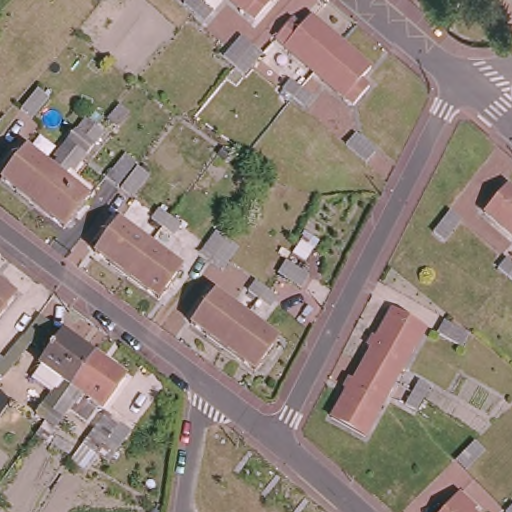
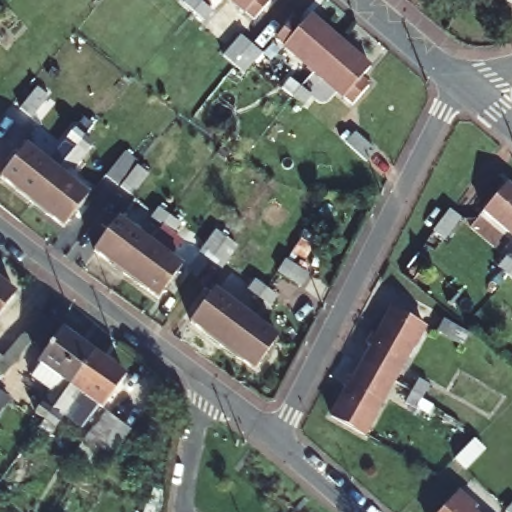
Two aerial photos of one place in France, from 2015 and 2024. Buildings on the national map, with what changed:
unchanged [(212,4),(203,13),(193,4),(189,0),(208,0),(212,4)]
unchanged [(253,13),(245,6),(238,0),(265,0),(253,13)]
unchanged [(310,71),(306,67),(280,44),(272,37),(288,18),(297,26),(307,15),(337,40),(331,47),(310,71)]
unchanged [(250,43),(260,52),(243,73),(232,64),(222,55),(240,34),(250,43)]
unchanged [(347,104),(340,97),(314,75),(310,71),(331,47),(337,40),(366,66),(355,78),(363,86),(347,104)]
unchanged [(302,86),(312,95),(303,105),(293,96),(283,87),(292,77),(302,86)]
unchanged [(47,94),(31,116),(20,107),(37,86),(47,94)]
unchanged [(28,201),(0,179),(0,172),(22,146),(47,165),(56,155),(51,151),(70,126),(80,133),(89,141),(70,166),(66,163),(57,173),(85,193),(60,225),(28,201)]
unchanged [(374,151),(364,162),(345,143),(354,133),(374,151)]
unchanged [(145,172),(130,194),(118,186),(135,164),(145,172)]
unchanged [(484,208),(507,180),(512,184),(512,232),(484,208)]
unchanged [(172,213),(172,214),(182,222),(175,231),(164,223),(153,215),(161,205),(172,213)]
unchanged [(430,233),(448,210),(460,219),(442,241),(430,233)]
unchanged [(142,237),(147,240),(122,272),(91,248),(115,216),(142,237)]
unchanged [(220,269),(208,261),(197,253),(212,231),(224,239),(235,247),(220,269)]
unchanged [(150,243),(178,264),(153,296),(122,272),(147,240),(150,243)]
unchanged [(510,272),(498,263),(507,254),(512,258),(512,275),(510,272)]
unchanged [(310,275),(301,286),(280,270),(288,259),(310,275)]
unchanged [(262,286),(273,295),(265,304),(255,296),(244,288),(251,278),(262,286)]
unchanged [(0,312),(0,281),(15,292),(0,312)]
unchanged [(237,310),(242,313),(217,345),(185,320),(210,289),(237,310)]
unchanged [(374,342),(370,339),(375,330),(380,333),(397,305),(427,323),(396,376),(365,357),(374,342)]
unchanged [(247,317),(274,338),(250,370),(217,345),(242,313),(247,317)]
unchanged [(463,335),(457,347),(433,333),(440,321),(463,335)]
unchanged [(73,391),(57,410),(48,403),(40,396),(49,384),(27,367),(63,322),(93,345),(125,370),(99,403),(73,383),(69,388),(73,391)]
unchanged [(355,373),(365,357),(396,376),(364,428),(333,410),(350,382),(345,380),(351,370),(355,373)]
unchanged [(432,381),(425,393),(418,404),(407,398),(414,386),(421,375),(432,381)]
unchanged [(127,430),(110,451),(100,443),(116,422),(127,430)]
unchanged [(475,443),(482,449),(464,470),(457,463),(453,460),(471,440),(475,443)]
unchanged [(475,507),(473,510),(476,512),(444,512),(460,493),(475,507)]
unchanged [(507,512),(505,510),(512,502),(512,512),(507,512)]

